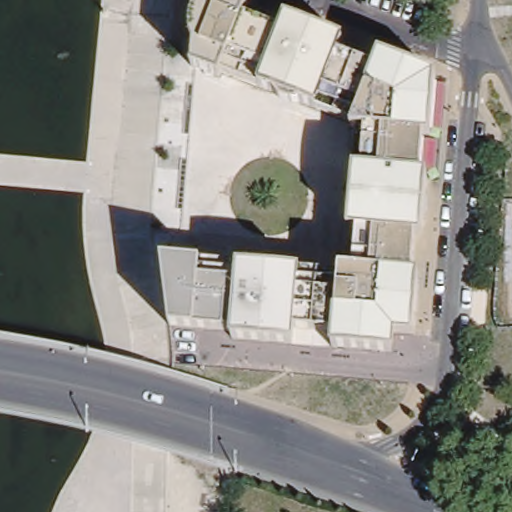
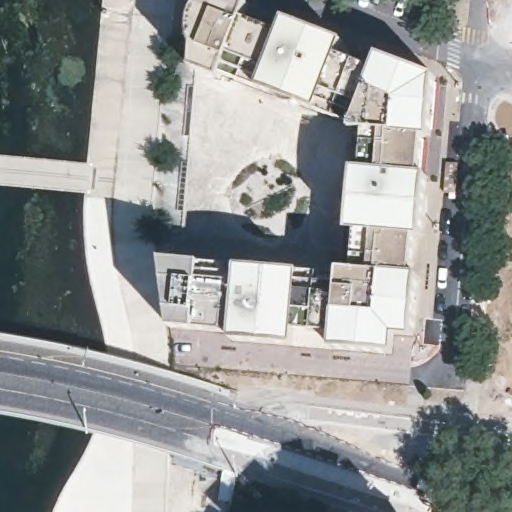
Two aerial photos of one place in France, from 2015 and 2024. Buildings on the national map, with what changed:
unchanged [(343,37),(337,52),(354,58),(333,113),(315,106),(219,69),(216,75),(196,67),(185,62),(190,0),(248,0),(243,14),(279,29),(284,14),(343,37)]
unchanged [(421,175),(427,176),(423,235),(417,234),(414,273),(419,274),(417,301),(416,307),(414,335),(393,332),(391,352),(333,347),(334,332),(312,330),(316,270),(338,272),(338,268),(342,268),(345,247),(355,132),(348,130),(348,127),(352,119),(333,113),(354,58),(374,66),(379,52),(435,75),(431,134),(425,134),(421,175)]
unchanged [(312,330),(294,328),(292,343),(230,337),(231,330),(192,327),(169,325),(168,312),(160,257),(198,260),(236,263),(316,270),(312,330)]

